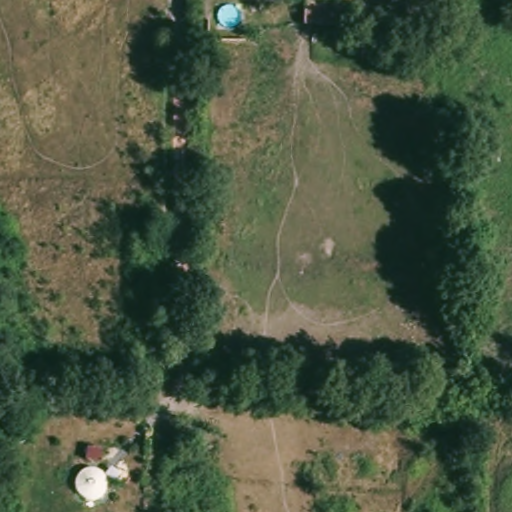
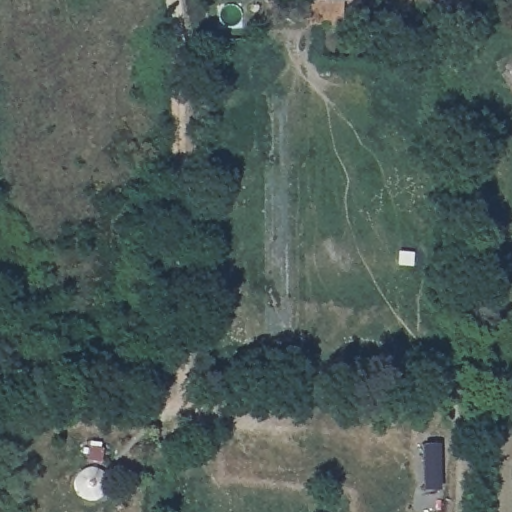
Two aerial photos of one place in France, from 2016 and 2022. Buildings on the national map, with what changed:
unchanged [(347,0),(347,24),(347,29),(306,27),(306,17),(306,0),(347,0)]

